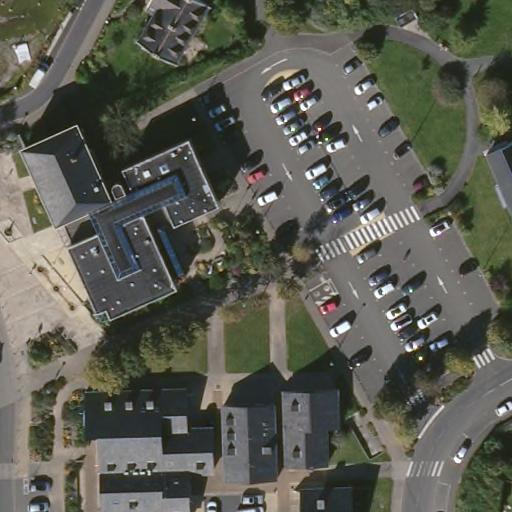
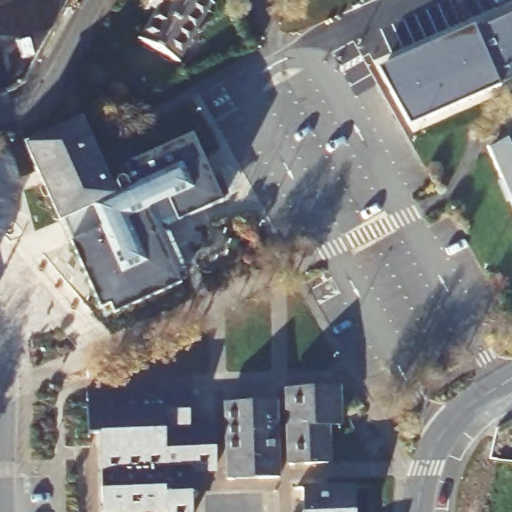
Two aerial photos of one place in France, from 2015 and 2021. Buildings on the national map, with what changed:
unchanged [(15,94),(0,97),(0,0),(75,0),(31,79),(15,94)]
unchanged [(216,0),(182,59),(145,37),(160,11),(151,5),(153,0),(216,0)]
new [(477,27),(512,12),(512,78),(501,83),(502,84),(412,125),(378,65),(476,22),(477,27)]
unchanged [(116,175),(137,166),(151,193),(119,207),(82,224),(76,210),(67,214),(33,137),(87,112),(116,175)]
unchanged [(197,139),(225,197),(171,222),(190,263),(115,297),(82,224),(119,207),(151,193),(137,166),(197,139)]
unchanged [(512,141),(512,181),(497,147),(512,141)]
unchanged [(303,383),(352,382),(354,422),(340,423),(341,450),(341,456),(338,456),(302,457),(300,383),(303,383)]
unchanged [(167,388),(196,387),(197,425),(221,424),(222,462),(196,462),(198,512),(186,512),(175,512),(175,502),(110,503),(107,430),(97,429),(96,391),(102,391),(106,391),(167,388)]
unchanged [(287,397),(290,457),(290,473),(240,475),(240,463),(237,398),(287,397)]
unchanged [(312,485),(312,482),(362,481),(362,491),(363,512),(312,512),(312,485)]

